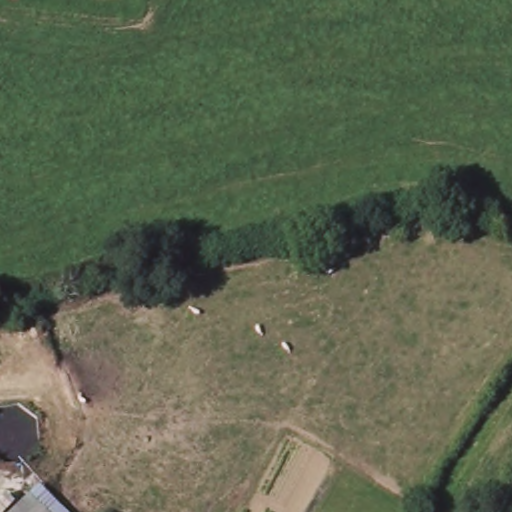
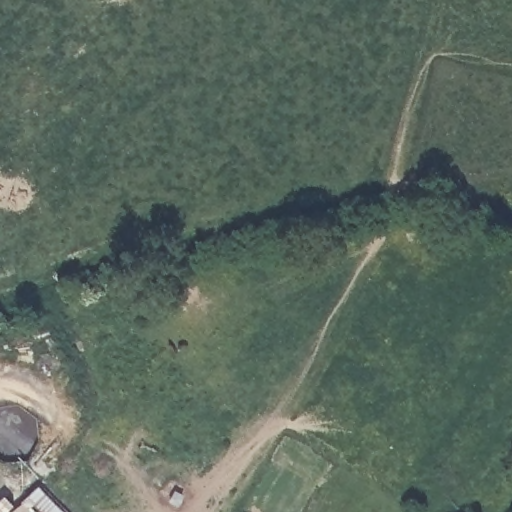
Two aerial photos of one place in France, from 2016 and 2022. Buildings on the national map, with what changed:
unchanged [(0,506),(17,489),(24,489),(49,512),(7,512),(0,506)]

